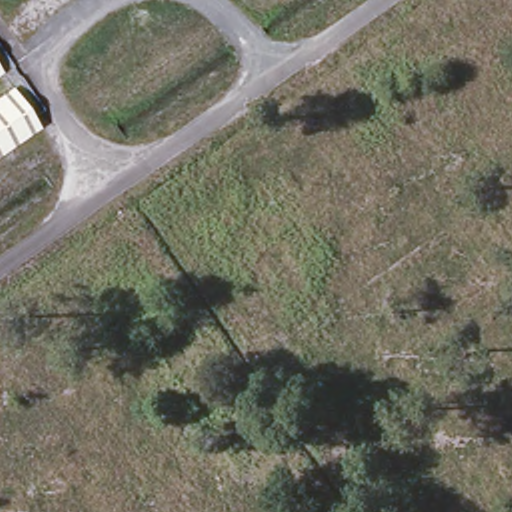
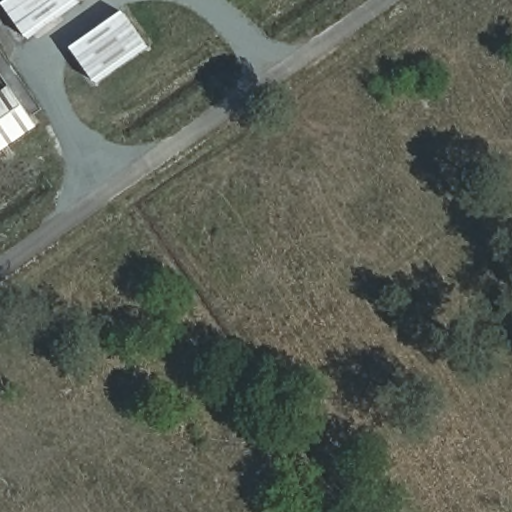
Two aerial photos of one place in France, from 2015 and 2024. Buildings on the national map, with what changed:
new [(4,6),(12,0),(79,0),(81,3),(28,40),(4,6)]
new [(96,85),(72,50),(125,13),(149,46),(96,85)]
unchanged [(38,127),(0,154),(0,93),(8,88),(38,127)]

